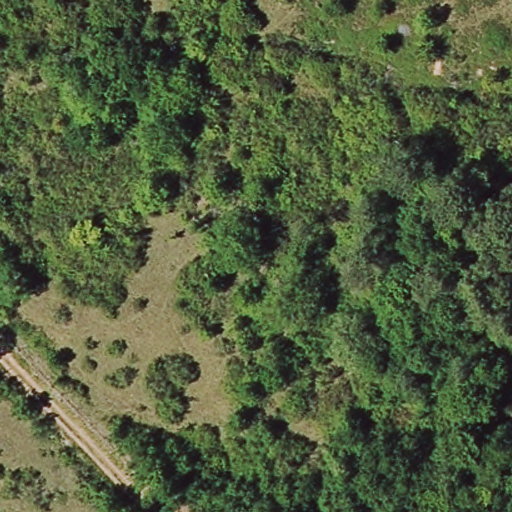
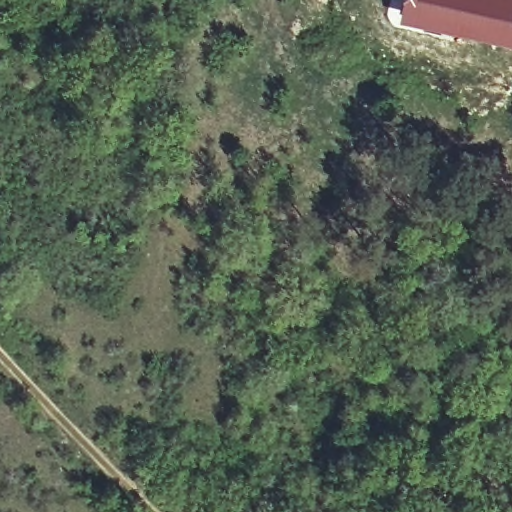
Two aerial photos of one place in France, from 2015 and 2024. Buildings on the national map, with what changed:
new [(512,51),(438,36),(397,26),(402,0),(512,0),(512,51)]

